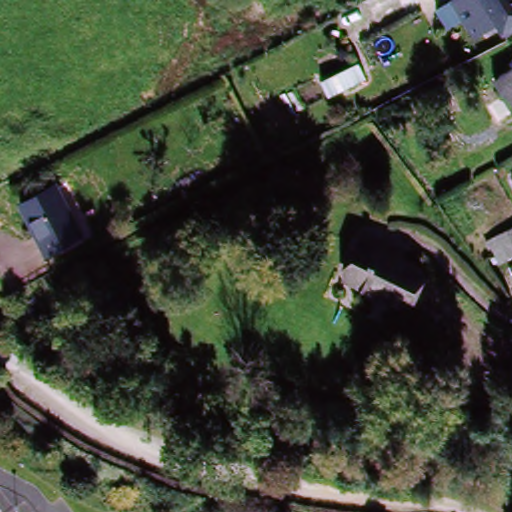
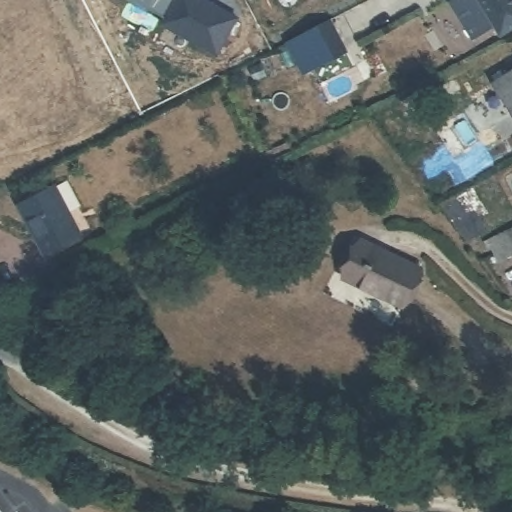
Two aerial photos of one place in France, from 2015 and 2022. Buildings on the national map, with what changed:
new [(217,56),(159,25),(174,0),(205,0),(238,17),(217,56)]
unchanged [(435,11),(453,0),(512,0),(512,26),(500,35),(494,25),(475,38),(462,19),(447,30),(435,11)]
new [(330,23),(346,53),(305,75),(287,45),(330,23)]
demolished [(356,65),(366,85),(331,102),(322,85),(356,65)]
unchanged [(512,72),(512,115),(493,84),(512,72)]
unchanged [(17,207),(52,185),(81,231),(47,254),(17,207)]
unchanged [(492,240),(508,232),(512,230),(512,261),(505,265),(497,269),(490,253),(485,243),(492,240)]
unchanged [(362,244),(419,275),(400,310),(343,278),(362,244)]

